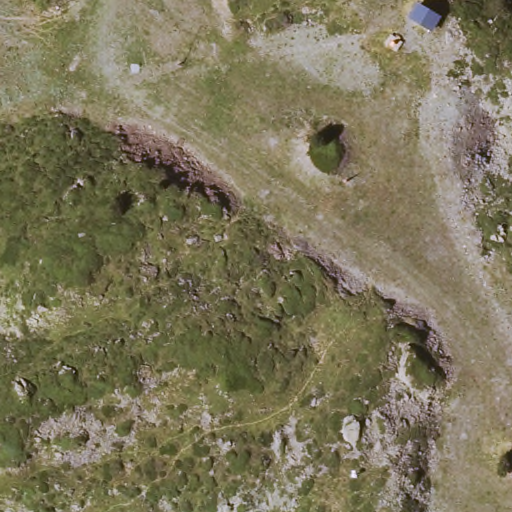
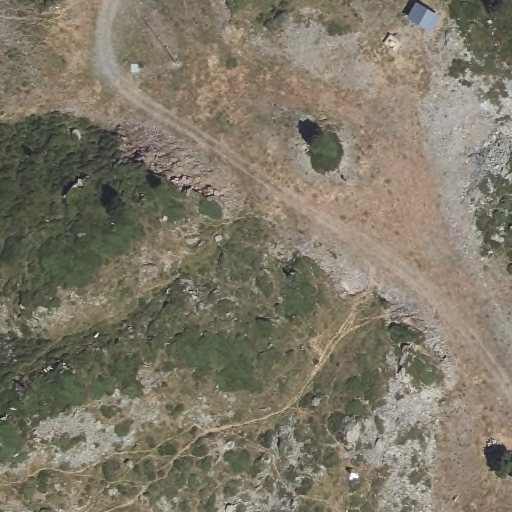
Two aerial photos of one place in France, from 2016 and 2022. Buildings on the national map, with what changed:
unchanged [(407,17),(417,3),(439,15),(430,28),(407,17)]

